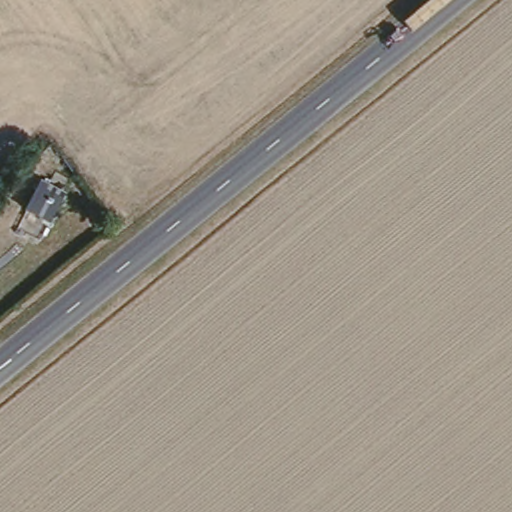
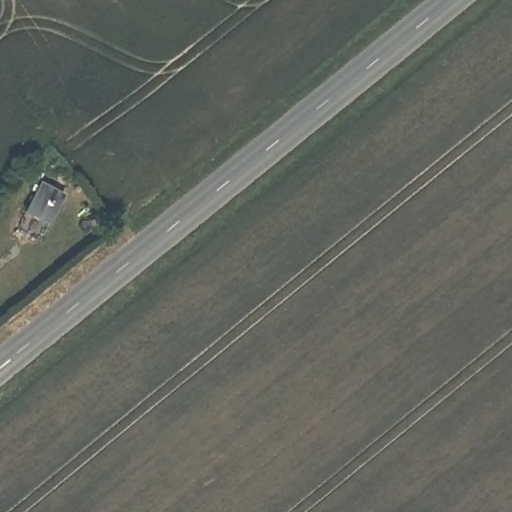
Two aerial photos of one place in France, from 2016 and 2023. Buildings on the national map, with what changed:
unchanged [(27,208),(33,191),(36,192),(40,179),(46,182),(44,190),(49,192),(50,188),(57,190),(56,196),(60,197),(51,218),(27,208)]

